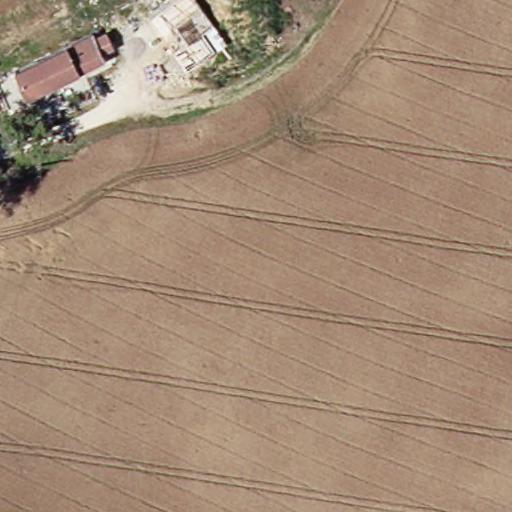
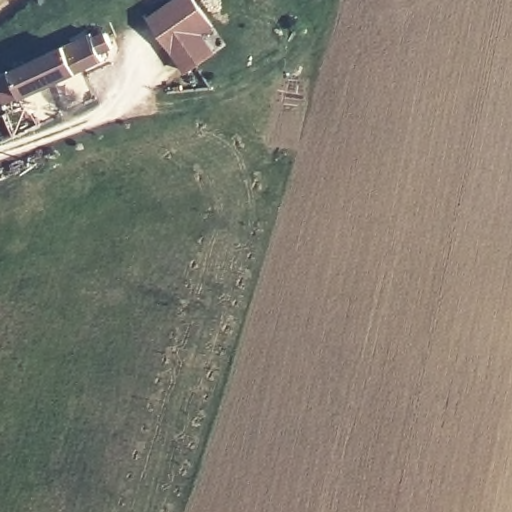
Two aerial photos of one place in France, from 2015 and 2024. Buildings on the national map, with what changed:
new [(196,0),(215,27),(204,36),(215,53),(186,73),(149,18),(174,0),(196,0)]
unchanged [(106,56),(109,63),(31,99),(19,72),(98,36),(100,42),(109,38),(115,52),(106,56)]

